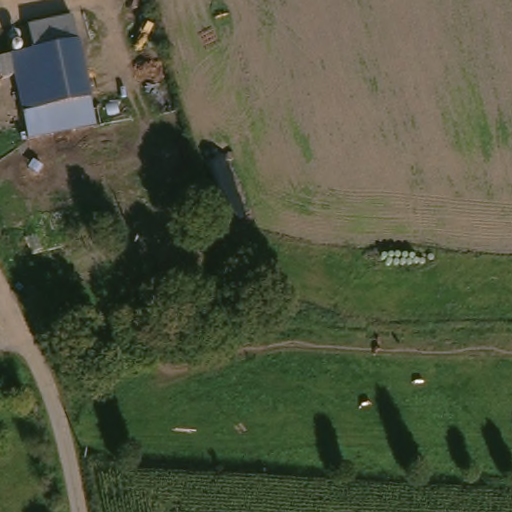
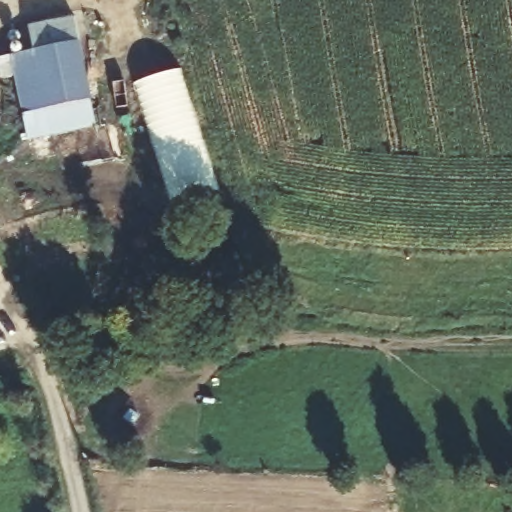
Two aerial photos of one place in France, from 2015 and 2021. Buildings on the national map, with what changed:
unchanged [(40,50),(35,24),(82,17),(104,125),(31,140),(13,58),(40,50)]
new [(180,69),(218,192),(172,206),(134,83),(180,69)]

